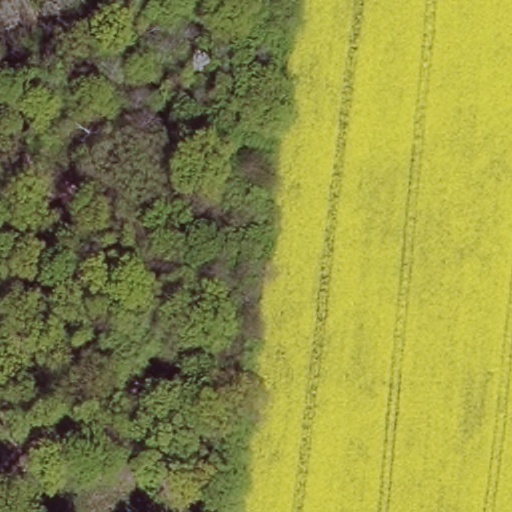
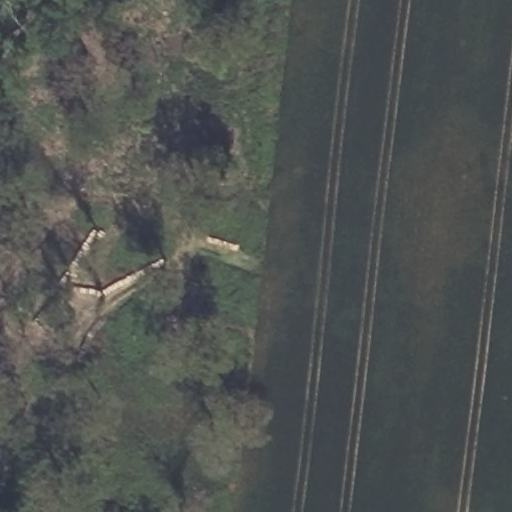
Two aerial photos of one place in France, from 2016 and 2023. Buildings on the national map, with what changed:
[]

